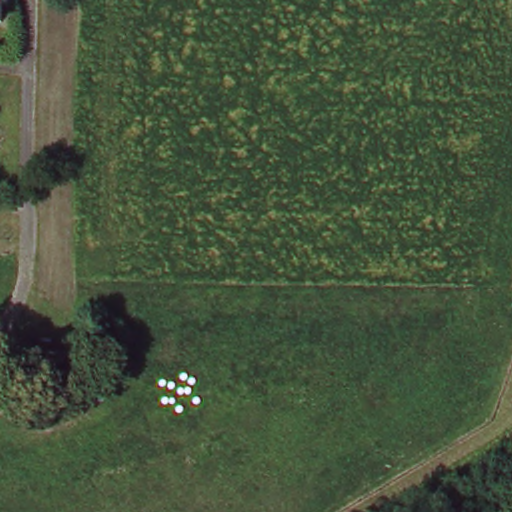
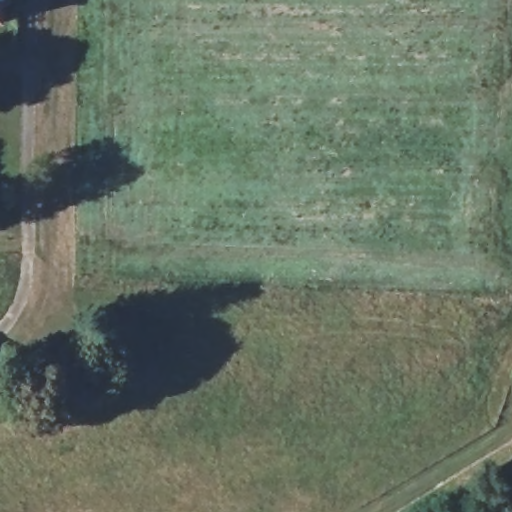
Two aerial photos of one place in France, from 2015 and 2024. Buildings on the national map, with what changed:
unchanged [(2,20),(0,19),(0,0),(2,0),(2,20)]

